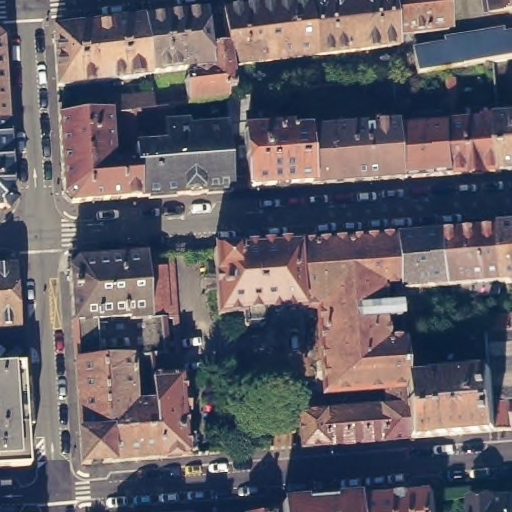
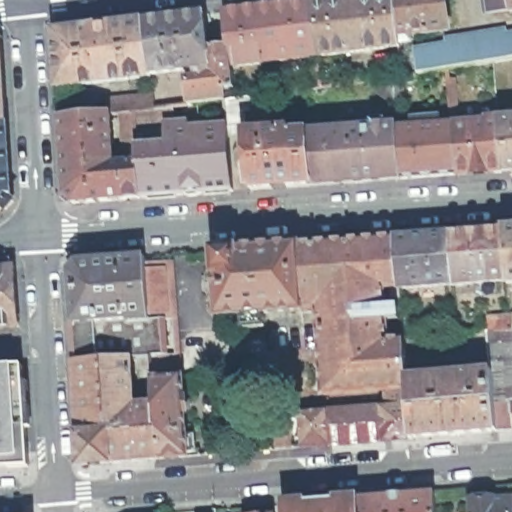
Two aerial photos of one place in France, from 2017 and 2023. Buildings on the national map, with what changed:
unchanged [(279,0),(315,0),(322,51),(237,61),(236,62),(232,41),(227,6),(279,0)]
unchanged [(403,41),(322,51),(315,0),(399,0),(403,30),(403,41)]
unchanged [(403,30),(399,0),(451,0),(454,25),(403,30)]
unchanged [(502,8),(495,7),(494,0),(488,0),(512,0),(512,7),(502,8)]
unchanged [(215,44),(232,41),(236,62),(229,65),(230,67),(235,65),(238,66),(240,84),(230,85),(230,95),(193,99),(190,76),(191,75),(200,74),(200,63),(155,70),(148,16),(200,10),(210,9),(215,44)]
unchanged [(59,27),(148,16),(155,70),(155,71),(63,82),(59,27)]
unchanged [(388,56),(405,55),(404,49),(423,45),(423,46),(452,41),(451,34),(511,25),(512,29),(512,55),(499,57),(452,64),(406,72),(397,73),(399,91),(391,92),(378,83),(377,76),(390,74),(388,56)]
unchanged [(11,123),(0,124),(0,36),(6,41),(11,123)]
unchanged [(128,150),(125,108),(140,106),(142,133),(143,142),(175,140),(172,125),(232,121),(230,96),(230,95),(241,92),(248,92),(248,93),(250,121),(233,122),(232,122),(237,185),(146,192),(143,157),(142,150),(128,150)]
unchanged [(118,159),(129,158),(143,157),(146,192),(77,197),(70,190),(65,111),(63,99),(113,94),(115,107),(115,110),(118,159)]
unchanged [(488,166),(461,169),(456,119),(503,115),(507,165),(488,166)]
unchanged [(507,165),(503,115),(512,115),(512,165),(507,165)]
unchanged [(313,127),(377,122),(376,116),(390,116),(390,122),(400,122),(400,125),(405,173),(316,180),(313,127)]
unchanged [(405,173),(400,125),(456,119),(461,169),(405,173)]
unchanged [(16,200),(9,207),(0,208),(0,124),(11,123),(16,200)]
unchanged [(253,182),(250,128),(296,125),(296,129),(313,127),(316,180),(256,185),(253,182)]
unchanged [(512,229),(512,283),(508,283),(507,280),(504,230),(512,229)]
unchanged [(450,234),(460,234),(504,230),(507,280),(453,285),(450,234)]
unchanged [(401,288),(400,288),(393,238),(409,237),(450,234),(453,285),(401,288)]
unchanged [(405,355),(406,378),(408,405),(389,407),(388,389),(325,394),(318,308),(301,310),(296,245),(333,242),(378,240),(393,238),(400,288),(400,297),(392,297),(391,286),(382,287),(385,308),(400,307),(401,319),(383,320),(385,341),(403,340),(405,355)]
unchanged [(264,312),(265,325),(263,327),(245,328),(243,327),(242,314),(218,316),(213,251),(296,245),(301,310),(264,312)]
unchanged [(140,264),(145,320),(145,321),(124,322),(124,320),(68,323),(65,271),(73,262),(140,257),(140,264)]
unchanged [(145,320),(140,264),(166,262),(170,318),(145,320)]
unchanged [(0,268),(15,267),(20,326),(0,328),(0,268)]
unchanged [(495,431),(490,371),(488,349),(487,349),(406,355),(405,355),(403,340),(403,337),(456,332),(489,330),(488,317),(510,315),(512,315),(512,430),(495,431)]
unchanged [(147,380),(145,364),(145,356),(147,356),(145,321),(145,320),(170,318),(173,362),(175,377),(177,376),(178,397),(181,397),(182,413),(179,413),(181,435),(190,434),(191,451),(182,452),(182,456),(155,458),(150,405),(147,380)]
unchanged [(68,323),(124,320),(124,322),(145,321),(147,356),(145,356),(126,357),(71,361),(68,323)]
unchanged [(0,353),(21,351),(22,365),(23,366),(30,467),(0,468),(0,353)]
unchanged [(77,465),(71,361),(126,357),(130,406),(150,405),(155,458),(77,465)]
unchanged [(407,377),(490,371),(495,431),(411,438),(408,405),(406,378),(407,377)]
unchanged [(411,438),(303,446),(300,414),(307,413),(389,407),(408,405),(411,438)]
unchanged [(470,501),(475,501),(477,494),(486,493),(490,500),(512,499),(512,512),(471,512),(470,501)]
unchanged [(435,502),(436,512),(359,512),(358,507),(435,502)]
unchanged [(358,507),(359,512),(306,512),(358,507)]

